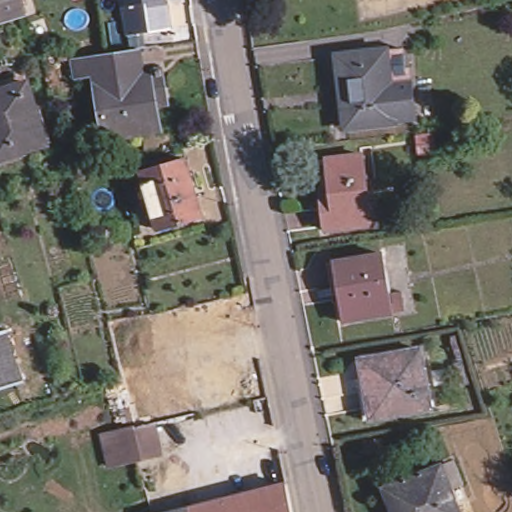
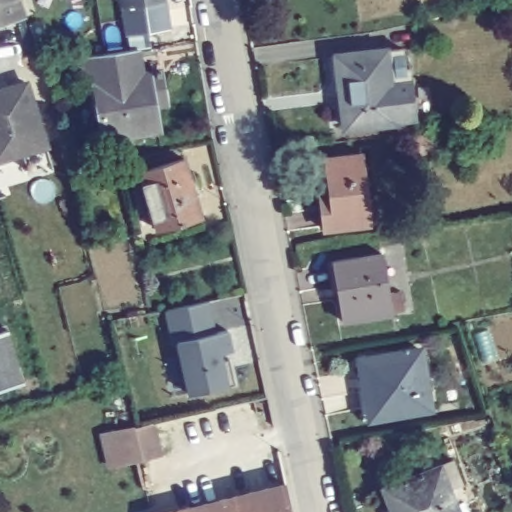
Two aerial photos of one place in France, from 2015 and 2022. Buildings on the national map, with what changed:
unchanged [(19,8),(24,24),(0,30),(0,0),(17,0),(19,8)]
unchanged [(172,27),(141,33),(131,35),(125,0),(167,0),(172,27)]
unchanged [(370,47),(389,45),(394,76),(397,75),(402,114),(380,117),(370,47)]
unchanged [(327,79),(319,80),(315,55),(334,53),(370,47),(380,117),(334,124),(327,79)]
unchanged [(107,140),(100,142),(89,77),(72,80),(69,60),(84,57),(105,55),(133,50),(137,75),(144,74),(154,127),(154,132),(107,140)]
unchanged [(0,150),(0,84),(22,79),(37,141),(0,150)]
unchanged [(317,189),(327,187),(322,159),(357,154),(367,222),(324,229),(317,189)]
unchanged [(145,207),(138,180),(135,170),(179,159),(182,170),(188,195),(145,207)]
unchanged [(194,219),(150,229),(145,207),(188,195),(194,219)]
unchanged [(399,307),(387,309),(387,310),(337,320),(327,259),(377,251),(384,290),(396,288),(399,307)]
new [(177,342),(171,343),(166,310),(212,300),(219,332),(231,330),(235,350),(229,351),(236,383),(229,385),(188,392),(177,342)]
unchanged [(0,328),(5,340),(17,380),(0,385),(0,328)]
unchanged [(367,409),(363,381),(365,381),(362,353),(418,345),(427,405),(404,408),(404,403),(367,409)]
unchanged [(112,440),(130,435),(152,430),(159,461),(137,466),(110,473),(102,441),(112,440)]
unchanged [(395,507),(384,478),(434,458),(455,512),(388,512),(387,510),(395,507)]
unchanged [(286,485),(292,512),(189,512),(189,510),(286,485)]
unchanged [(189,512),(183,512),(189,510),(189,512)]

